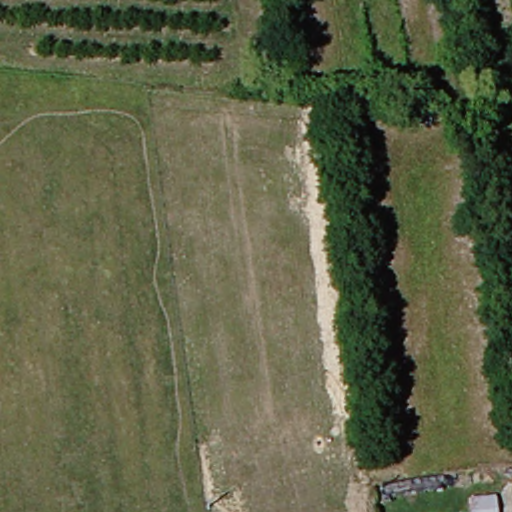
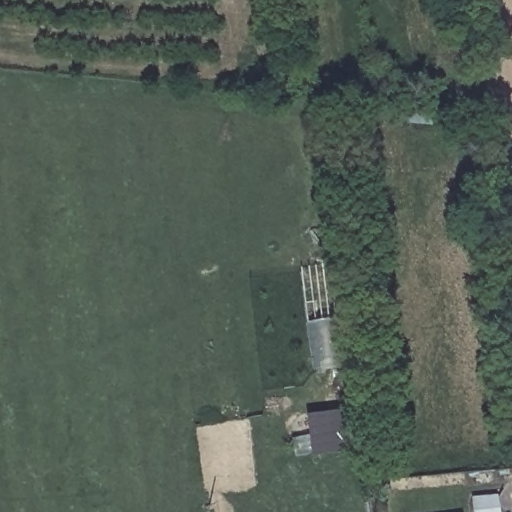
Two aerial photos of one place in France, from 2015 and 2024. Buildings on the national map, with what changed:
new [(303,414),(338,411),(343,452),(308,455),(303,414)]

